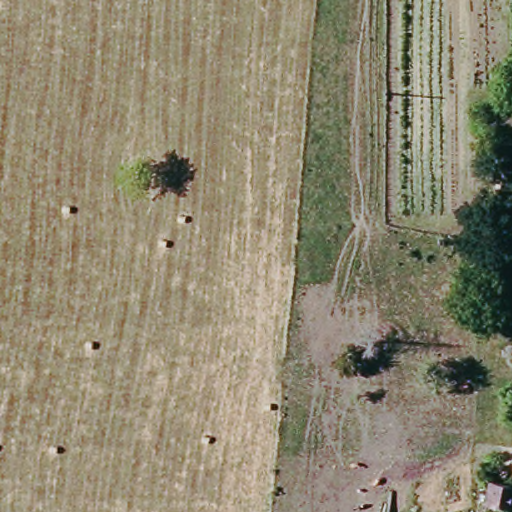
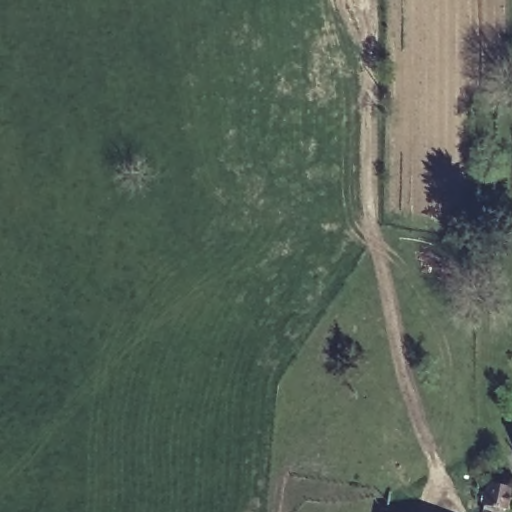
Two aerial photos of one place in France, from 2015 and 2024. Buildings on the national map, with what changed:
unchanged [(510,507),(484,502),(487,481),(512,486),(512,500),(510,507)]

